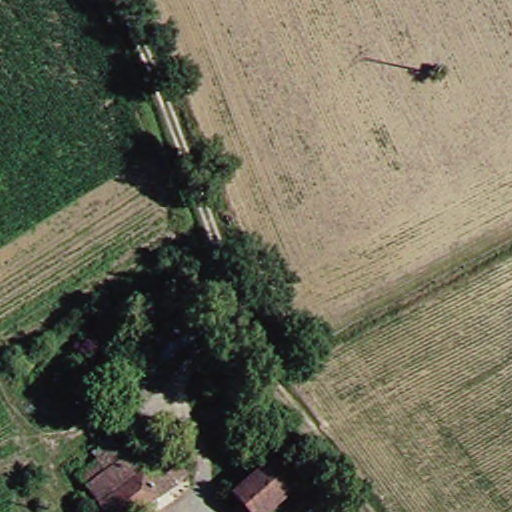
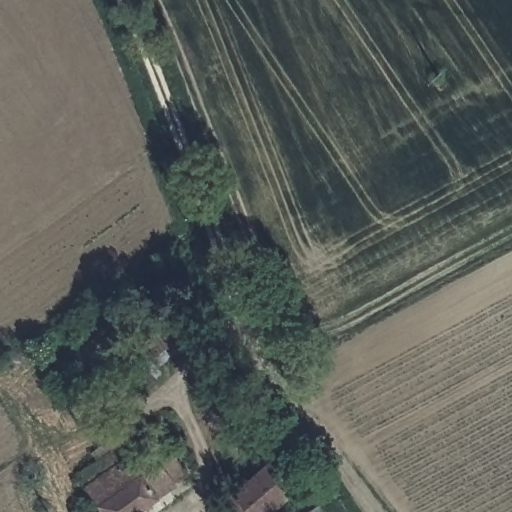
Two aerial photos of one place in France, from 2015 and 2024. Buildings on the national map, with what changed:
unchanged [(157,345),(199,315),(210,331),(168,361),(157,345)]
unchanged [(164,427),(199,476),(185,486),(150,437),(164,427)]
unchanged [(151,512),(113,512),(86,475),(108,459),(103,452),(120,440),(128,452),(150,437),(185,486),(166,499),(167,500),(151,512)]
unchanged [(283,453),(306,480),(269,512),(254,512),(237,493),(283,453)]

